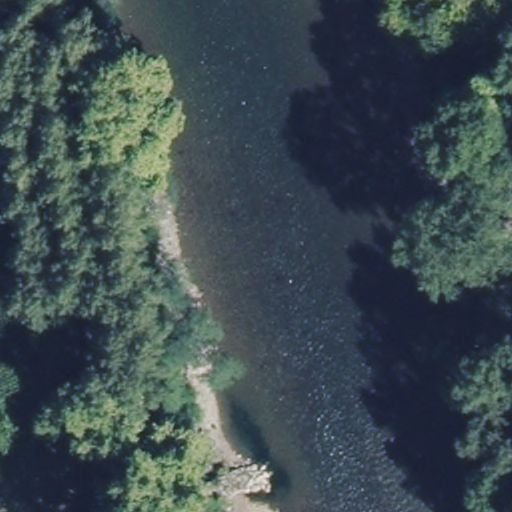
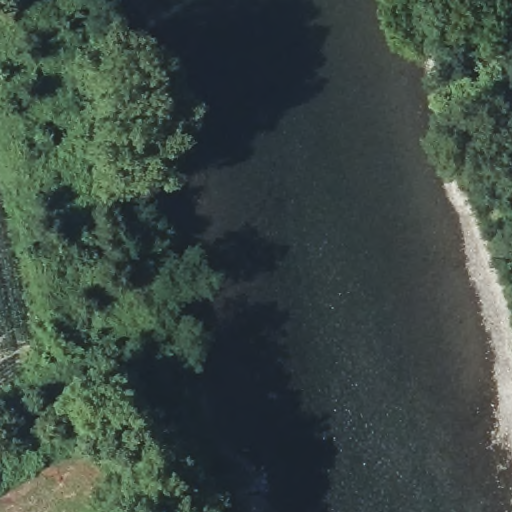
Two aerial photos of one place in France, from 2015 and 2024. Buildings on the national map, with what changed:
[]

